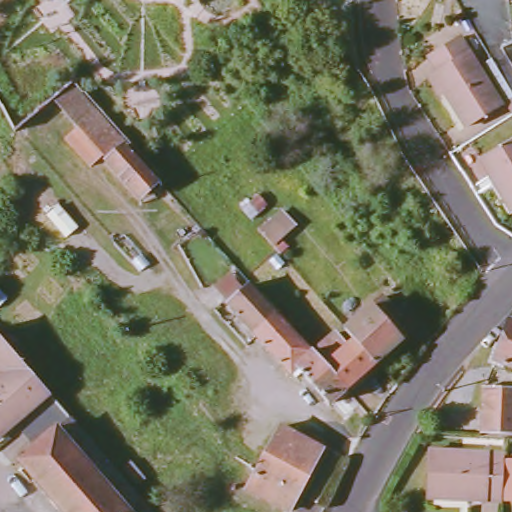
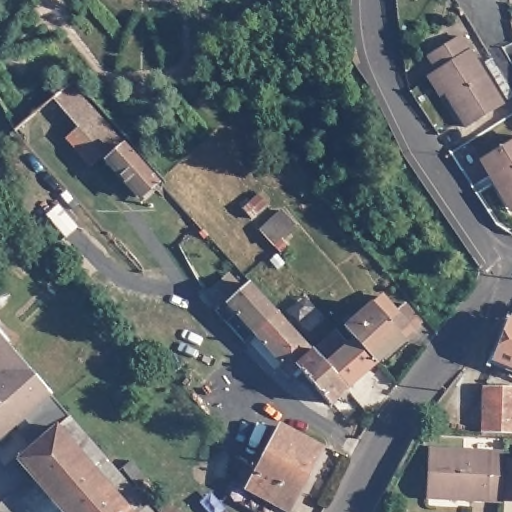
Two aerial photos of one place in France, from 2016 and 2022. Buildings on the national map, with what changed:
unchanged [(430,72),(435,68),(440,65),(432,52),(462,34),(504,98),(470,121),(447,87),(442,90),(430,72)]
unchanged [(69,84),(124,144),(123,145),(156,184),(140,197),(52,99),(69,84)]
unchanged [(512,144),(512,209),(494,180),(489,183),(479,165),(512,144)]
unchanged [(258,199),(266,209),(251,223),(242,214),(258,199)]
unchanged [(274,223),(282,215),(294,229),(286,236),(270,249),(259,236),(274,223)]
unchanged [(228,293),(244,279),(249,284),(256,278),(284,309),(261,330),(228,293)]
unchanged [(359,334),(358,335),(348,324),(350,322),(385,290),(400,306),(410,299),(425,316),(380,357),(359,334)]
unchanged [(359,334),(380,357),(350,384),(334,399),(329,394),(325,397),(306,375),(304,377),(295,367),(261,330),(284,309),(316,346),(337,327),(350,342),(358,335),(359,334)]
unchanged [(512,321),(512,367),(493,360),(509,319),(512,321)]
unchanged [(52,398),(19,427),(15,423),(0,436),(0,338),(6,345),(52,398)]
unchanged [(477,430),(479,387),(512,387),(512,431),(477,430)]
unchanged [(18,460),(34,446),(19,427),(52,398),(151,512),(63,512),(18,460)]
unchanged [(316,445),(302,475),(306,478),(289,509),(247,489),(278,425),(316,445)]
unchanged [(428,492),(430,449),(455,451),(453,493),(428,492)]
unchanged [(455,451),(505,452),(504,476),(503,499),(467,497),(467,493),(453,493),(455,451)]
unchanged [(144,478),(137,484),(122,468),(130,460),(144,478)]

